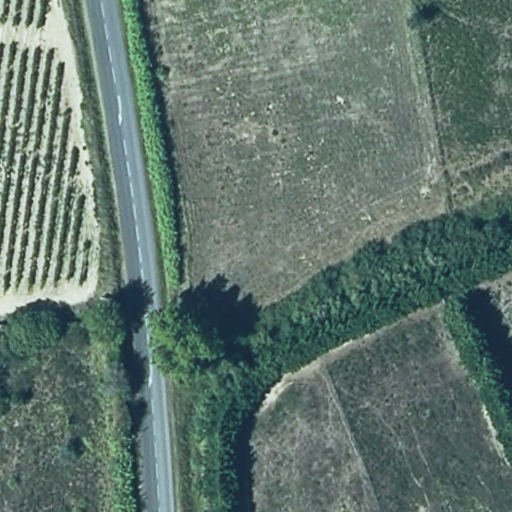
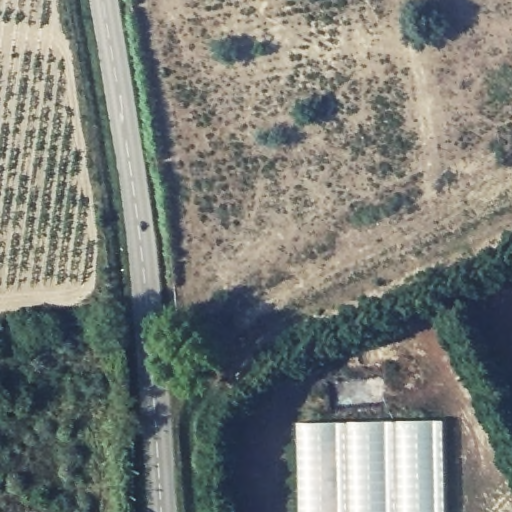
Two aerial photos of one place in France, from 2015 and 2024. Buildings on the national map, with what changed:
new [(299,512),(297,422),(442,419),(444,512),(299,512)]

